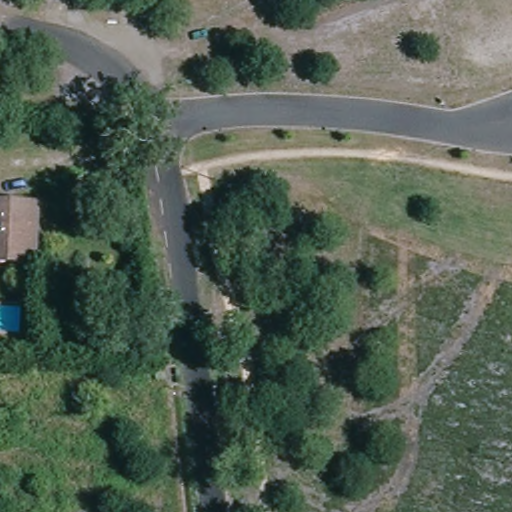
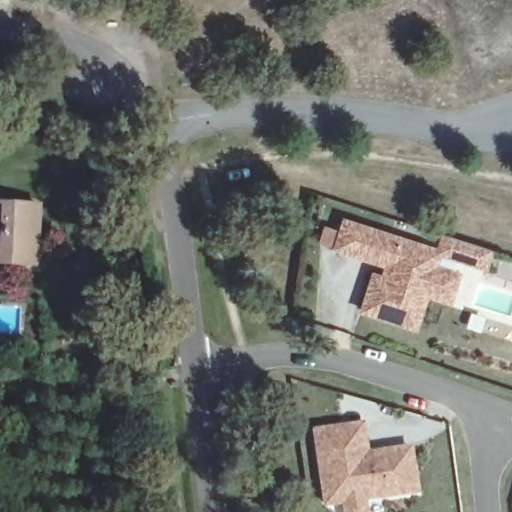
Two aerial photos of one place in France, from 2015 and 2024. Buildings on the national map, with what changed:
unchanged [(0,194),(42,194),(44,248),(44,262),(0,263),(0,194)]
new [(437,247),(441,233),(493,250),(486,270),(441,256),(439,264),(461,272),(451,304),(427,297),(416,331),(358,312),(372,272),(383,275),(384,266),(332,251),(342,216),(437,247)]
new [(367,499),(368,512),(343,512),(342,503),(323,504),(313,428),(366,419),(370,450),(413,444),(419,492),(367,499)]

